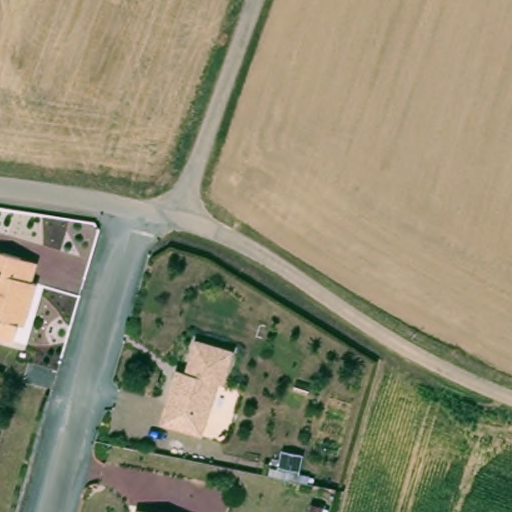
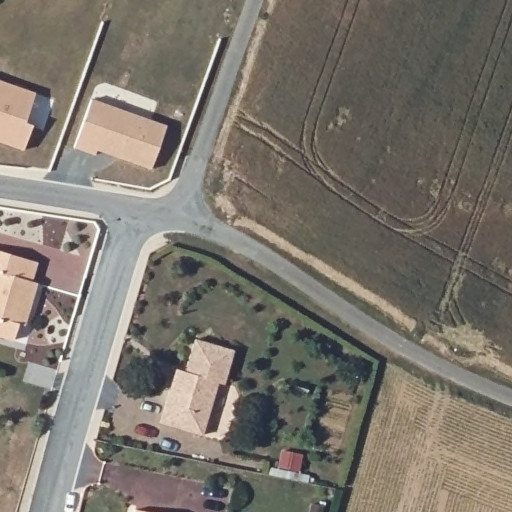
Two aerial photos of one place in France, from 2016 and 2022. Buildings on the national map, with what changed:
new [(36,94),(26,122),(32,125),(24,150),(0,142),(0,81),(36,94)]
new [(90,95),(165,122),(149,165),(95,146),(93,151),(72,144),(90,95)]
unchanged [(20,258),(29,261),(36,263),(30,282),(36,284),(32,304),(23,303),(12,341),(7,340),(0,338),(0,252),(20,258)]
unchanged [(237,343),(227,377),(221,375),(206,428),(164,416),(176,373),(189,366),(198,332),(237,343)]
unchanged [(320,510),(319,512),(306,512),(307,507),(320,510)]
unchanged [(142,512),(133,512),(134,510),(142,512)]

